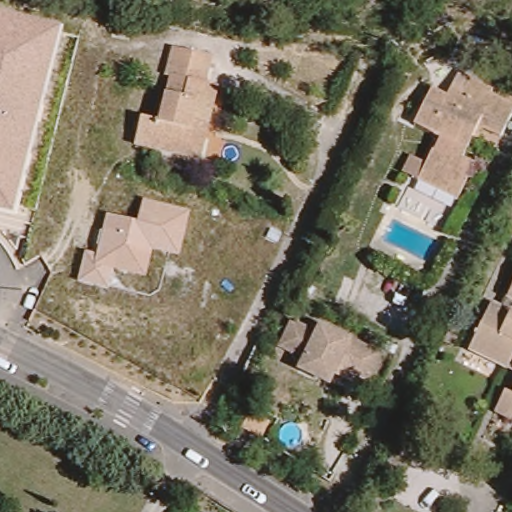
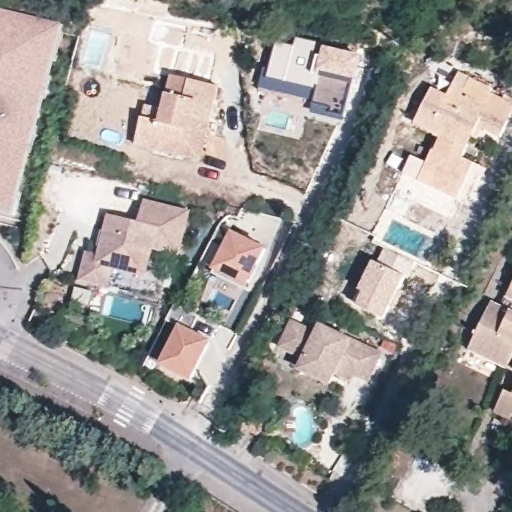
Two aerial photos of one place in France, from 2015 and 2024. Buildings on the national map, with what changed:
unchanged [(0,212),(0,10),(65,24),(17,215),(0,212)]
new [(295,46),(297,38),(325,44),(324,46),(362,56),(357,82),(355,81),(343,121),(311,114),(313,101),(261,89),(265,67),(270,69),(277,43),(295,46)]
unchanged [(159,147),(140,142),(147,115),(165,120),(175,74),(170,73),(177,45),(217,54),(210,80),(223,84),(215,118),(205,158),(159,147)]
unchanged [(444,138),(433,133),(418,125),(426,109),(437,88),(451,95),(455,86),(462,71),(498,89),(495,93),(512,101),(512,120),(503,138),(483,126),(468,156),(480,164),(462,200),(423,179),(407,171),(415,155),(431,163),(444,138)]
unchanged [(190,212),(180,258),(154,252),(147,279),(113,271),(109,289),(78,283),(85,252),(97,255),(107,215),(138,222),(144,198),(190,212)]
new [(232,234),(265,249),(244,290),(212,274),(232,234)]
new [(358,290),(373,259),(377,261),(383,247),(414,261),(407,276),(385,318),(355,304),(361,292),(358,290)]
unchanged [(512,368),(475,349),(497,303),(508,309),(512,301),(512,367),(512,368)]
new [(181,327),(177,325),(184,309),(200,317),(192,332),(205,339),(208,347),(192,380),(162,365),(181,327)]
unchanged [(295,369),(296,366),(300,358),(285,349),(276,345),(288,321),(297,326),(313,334),(317,326),(347,341),(345,343),(358,351),(360,348),(376,356),(362,383),(347,375),(344,381),(329,374),(327,377),(323,384),(295,369)]
unchanged [(500,410),(510,390),(512,390),(512,416),(500,410)]
unchanged [(261,436),(243,426),(251,411),(269,421),(261,436)]

